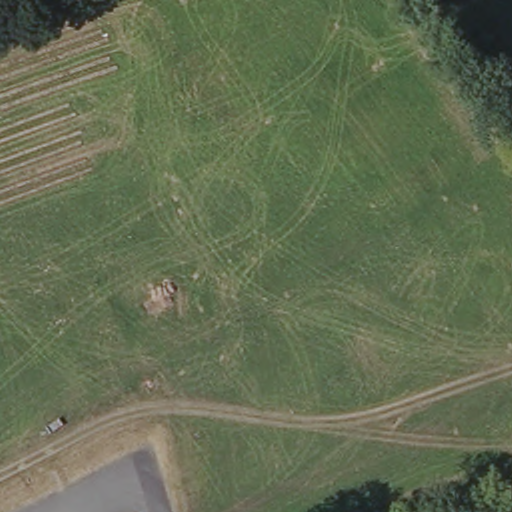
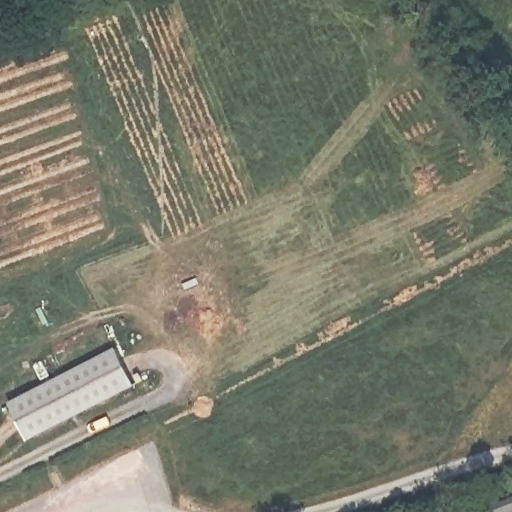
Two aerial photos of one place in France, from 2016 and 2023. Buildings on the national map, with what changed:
new [(120,344),(139,380),(29,433),(14,398),(120,344)]

